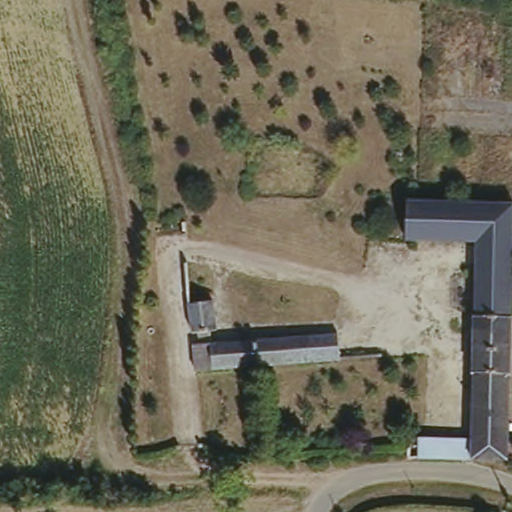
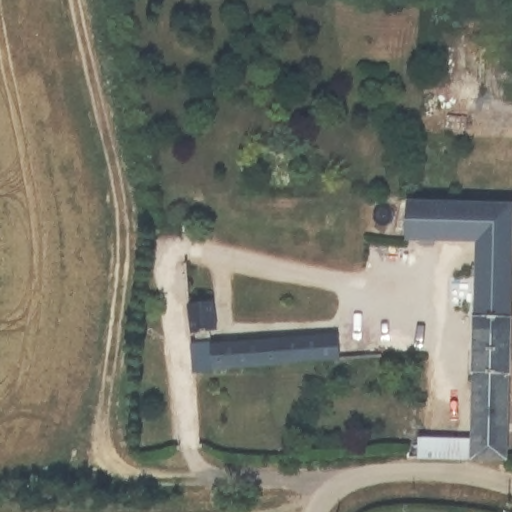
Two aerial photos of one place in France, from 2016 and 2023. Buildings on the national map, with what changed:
unchanged [(512,419),(511,458),(417,455),(416,436),(471,437),(474,242),(406,238),(408,198),(512,201),(512,419)]
unchanged [(210,284),(207,314),(202,314),(201,325),(191,324),(191,314),(182,314),(185,285),(210,284)]
unchanged [(206,332),(328,325),(330,359),(208,367),(206,332)]

